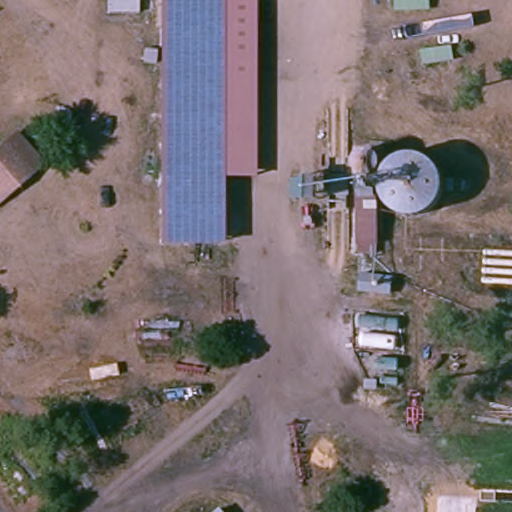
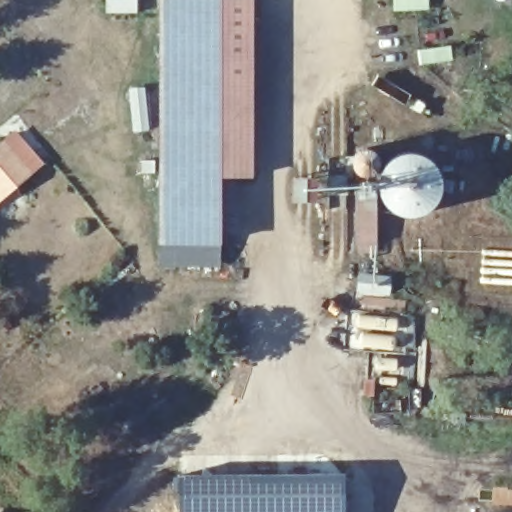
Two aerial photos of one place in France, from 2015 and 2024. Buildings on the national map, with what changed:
unchanged [(260,180),(224,179),(222,245),(160,245),(160,0),(261,0),(260,180)]
new [(429,10),(392,12),(392,0),(429,0),(429,10)]
new [(451,44),(453,61),(418,65),(416,49),(451,44)]
unchanged [(45,163),(0,201),(0,148),(17,133),(25,140),(40,158),(45,163)]
unchanged [(356,194),(351,194),(332,194),(330,170),(361,169),(361,162),(361,156),(365,150),(371,147),(377,148),(382,152),(385,159),(384,164),(392,160),(400,156),(410,152),(420,153),(430,156),(438,162),(445,171),(444,176),(443,183),(442,191),(440,199),(437,205),(432,210),(427,213),(417,214),(410,214),(403,212),(399,210),(393,205),(387,199),(381,192),(377,192),(380,244),(358,246),(356,194)]
new [(180,474),(346,471),(346,492),(346,512),(180,512),(180,493),(180,474)]
demolished [(223,512),(215,512),(220,508),(223,512)]

